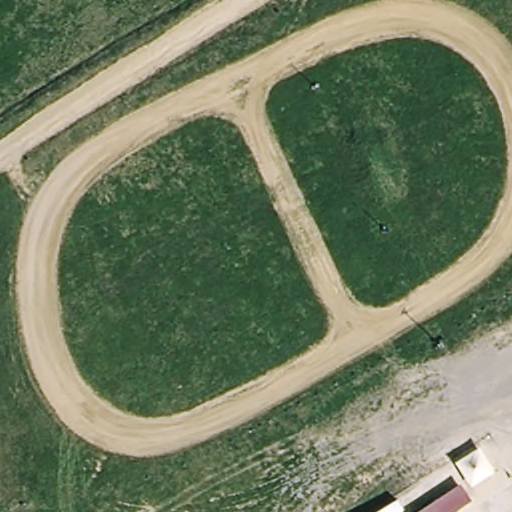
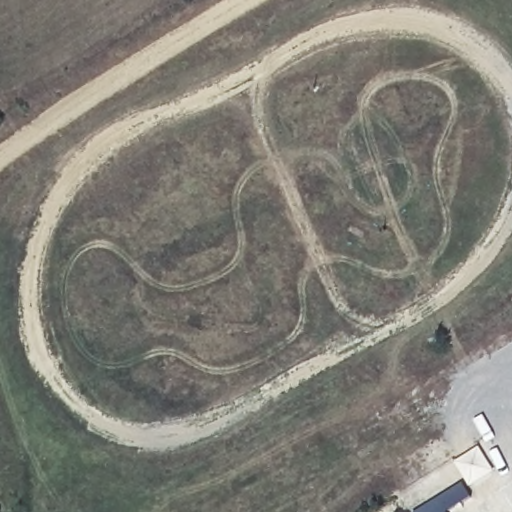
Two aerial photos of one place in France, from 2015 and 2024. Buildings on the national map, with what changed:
unchanged [(484,446),(495,461),(465,483),(453,466),(484,446)]
unchanged [(461,484),(470,500),(453,512),(417,512),(461,484)]

